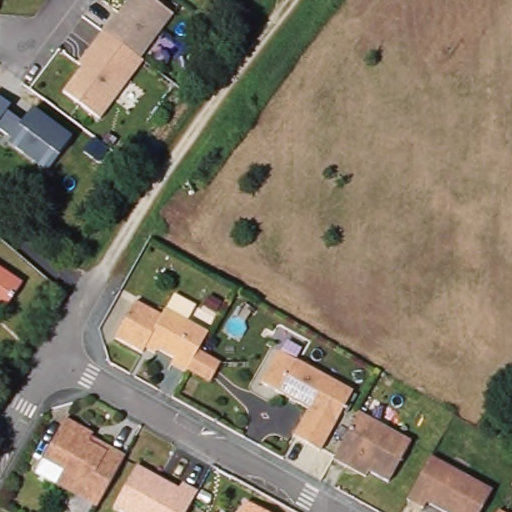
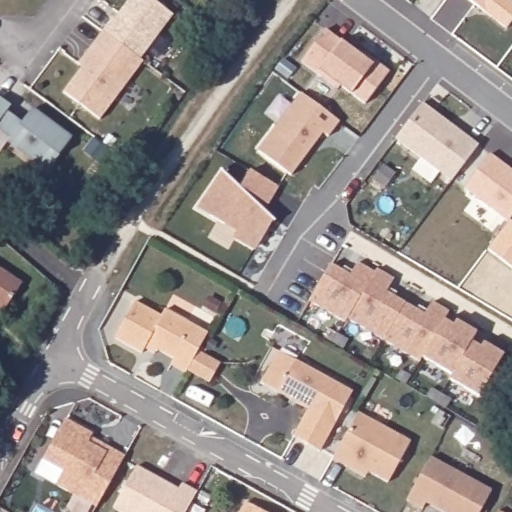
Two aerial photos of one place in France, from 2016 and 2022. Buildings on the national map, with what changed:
unchanged [(110,20),(125,0),(149,0),(169,15),(155,32),(140,52),(135,59),(99,31),(108,19),(110,20)]
new [(472,0),(510,0),(512,2),(512,19),(507,26),(472,0)]
unchanged [(200,16),(205,20),(210,23),(205,30),(195,22),(200,16)]
new [(325,29),(362,57),(365,54),(389,71),(365,103),(340,85),(337,88),(300,61),(325,29)]
unchanged [(74,64),(87,47),(99,31),(135,59),(139,61),(95,119),(59,92),(78,67),(74,64)]
new [(302,92),(340,122),(329,136),(323,132),(292,175),(258,150),(302,92)]
unchanged [(10,101),(6,107),(22,119),(32,105),(72,134),(48,166),(9,137),(11,132),(0,124),(0,93),(10,101)]
new [(423,102),(477,143),(450,180),(396,138),(423,102)]
new [(512,170),(512,218),(510,221),(465,187),(490,154),(512,170)]
new [(223,171),(241,188),(251,170),(280,187),(265,211),(273,219),(255,247),(236,237),(240,232),(198,207),(223,171)]
new [(512,222),(512,268),(487,250),(510,221),(512,222)]
new [(332,263),(351,274),(359,262),(376,272),(378,268),(395,280),(387,291),(426,314),(432,302),(450,311),(445,321),(455,325),(457,320),(476,332),(472,340),(482,347),(484,342),(505,355),(478,396),(450,380),(452,375),(423,357),(419,361),(348,317),(345,322),(311,302),(332,263)]
unchanged [(23,283),(4,311),(0,308),(0,267),(23,283)]
unchanged [(209,381),(188,370),(186,373),(171,365),(174,358),(157,350),(155,353),(145,348),(142,353),(115,337),(135,302),(161,316),(167,310),(208,332),(197,352),(218,362),(209,381)]
unchanged [(320,452),(293,437),(308,409),(273,390),(261,383),(278,351),(291,357),(353,392),(335,424),(320,452)]
unchanged [(347,467),(333,459),(333,458),(358,412),(411,443),(388,482),(368,472),(365,477),(347,467)]
unchanged [(55,484),(35,472),(43,460),(66,418),(93,433),(89,442),(106,452),(109,447),(125,456),(96,507),(55,484)]
unchanged [(426,457),(487,491),(475,512),(440,512),(440,507),(423,498),(418,508),(402,500),(426,457)]
unchanged [(132,466),(174,489),(177,483),(192,491),(181,512),(116,512),(109,508),(132,466)]
unchanged [(246,502),(265,512),(240,512),(246,502)]
unchanged [(502,512),(497,512),(498,510),(502,512)]

